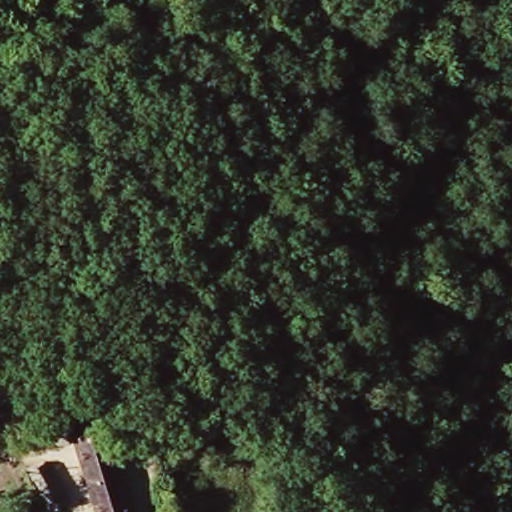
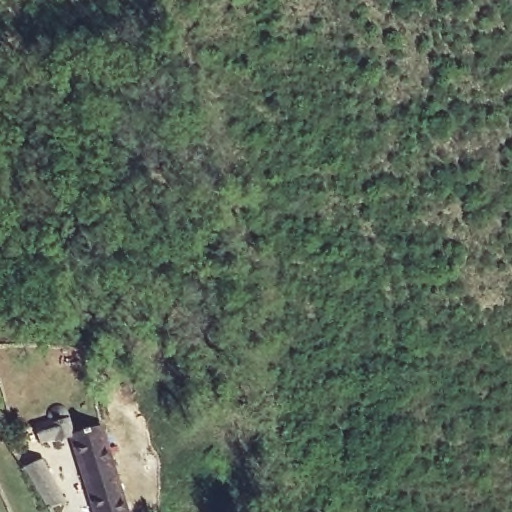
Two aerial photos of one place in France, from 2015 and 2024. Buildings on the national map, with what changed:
unchanged [(65,439),(43,447),(40,434),(59,429),(58,423),(60,415),(69,411),(77,417),(83,438),(109,432),(132,512),(102,512),(90,474),(78,441),(69,445),(65,439)]
unchanged [(43,512),(22,472),(41,463),(49,478),(63,505),(50,512),(43,512)]

